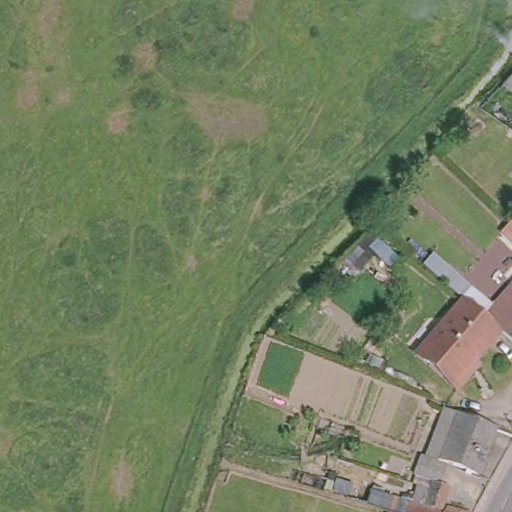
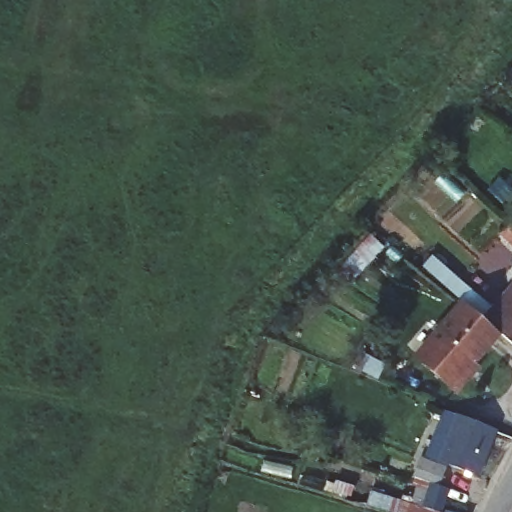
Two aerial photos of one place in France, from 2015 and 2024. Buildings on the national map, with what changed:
unchanged [(489,308),(512,287),(512,345),(504,337),(475,308),(483,301),(489,308)]
unchanged [(453,388),(419,357),(471,303),(475,308),(504,337),(453,388)]
unchanged [(448,405),(455,408),(438,450),(448,454),(439,475),(444,477),(434,505),(439,507),(441,502),(460,511),(460,512),(417,512),(390,499),(391,494),(399,497),(414,466),(418,466),(437,427),(448,405)]
unchanged [(438,450),(455,408),(489,425),(473,464),(448,454),(438,450)]

